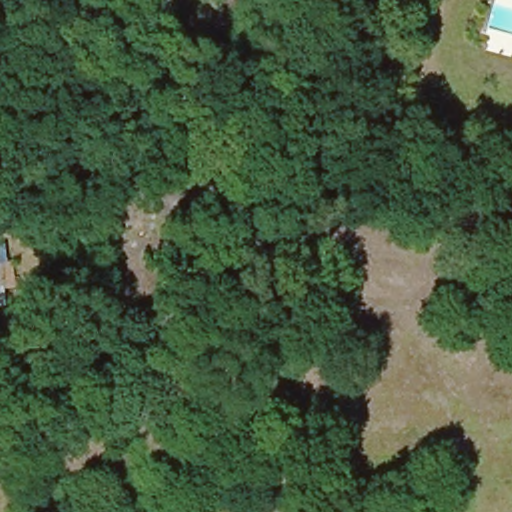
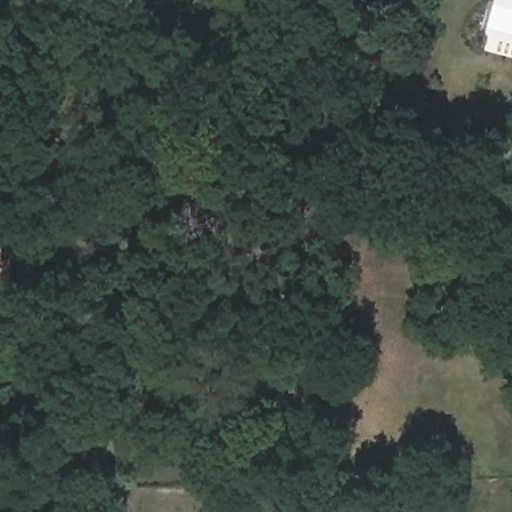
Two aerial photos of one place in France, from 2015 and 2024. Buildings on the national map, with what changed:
unchanged [(500,219),(483,208),(494,191),(511,201),(500,219)]
unchanged [(0,305),(0,243),(11,242),(15,286),(4,287),(6,304),(0,305)]

